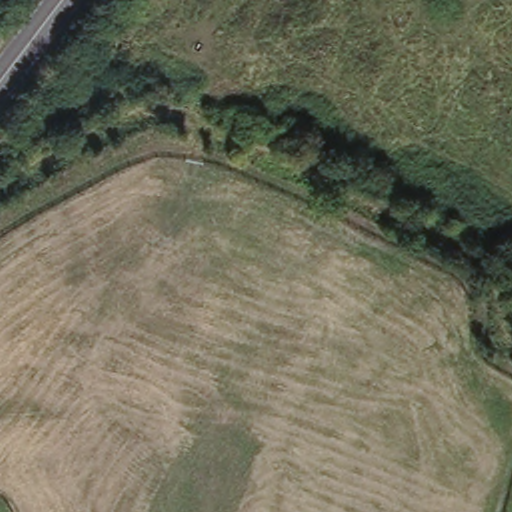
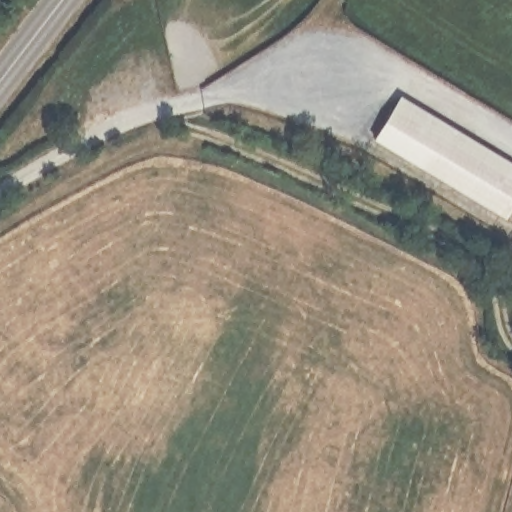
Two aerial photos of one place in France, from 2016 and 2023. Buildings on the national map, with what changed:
new [(512,162),(512,210),(506,221),(374,141),(399,96),(512,162)]
demolished [(271,170),(271,191),(238,193),(237,170),(271,170)]

